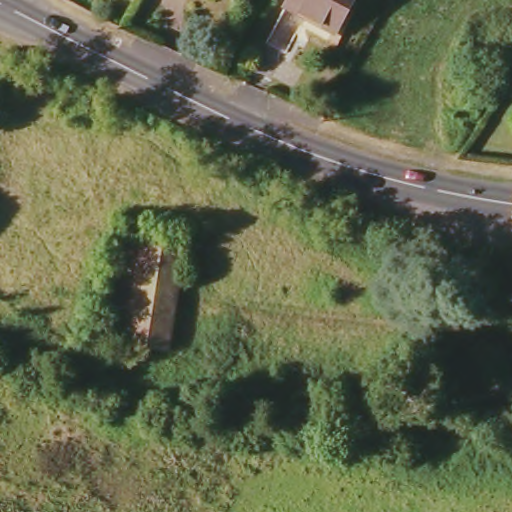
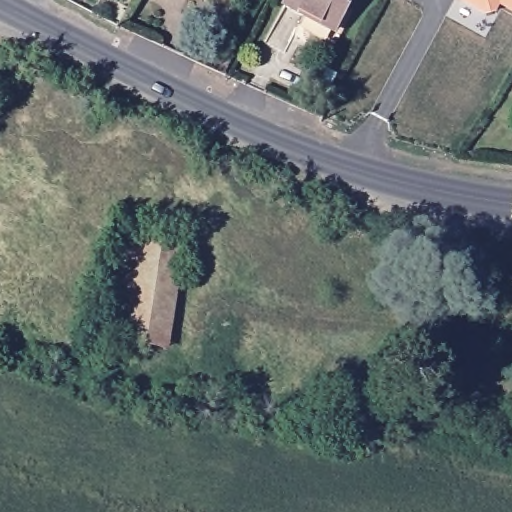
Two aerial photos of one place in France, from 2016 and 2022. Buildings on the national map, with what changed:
unchanged [(283,6),(287,0),(350,0),(333,32),(283,6)]
new [(497,12),(485,16),(457,0),(512,0),(512,12),(500,6),(497,12)]
unchanged [(180,249),(166,347),(100,338),(113,240),(180,249)]

